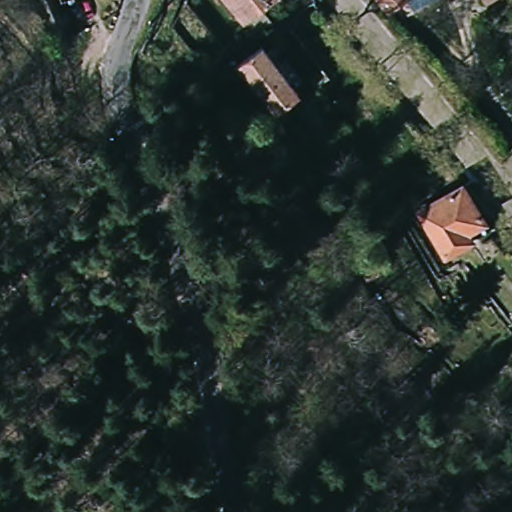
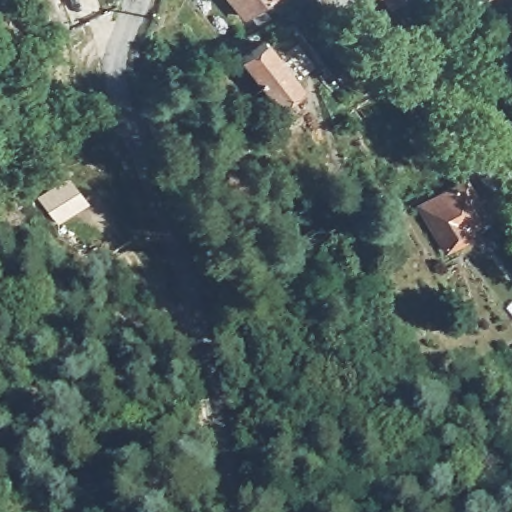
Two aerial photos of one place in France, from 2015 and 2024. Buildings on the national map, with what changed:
unchanged [(270,23),(246,37),(233,21),(240,16),(227,0),(263,0),(256,4),(270,23)]
unchanged [(390,0),(383,7),(377,0),(390,0)]
unchanged [(406,0),(411,0),(408,1),(406,0)]
unchanged [(285,97),(272,106),(245,66),(239,69),(235,62),(239,57),(243,54),(261,41),(279,65),(286,59),(301,78),(292,84),(296,89),(285,97)]
new [(50,189),(45,183),(60,170),(87,204),(60,227),(38,199),(50,189)]
unchanged [(445,252),(418,207),(460,180),(484,217),(489,224),(471,235),(445,252)]
unchanged [(361,264),(378,254),(383,263),(366,273),(361,264)]
unchanged [(509,445),(512,443),(512,450),(509,445)]

